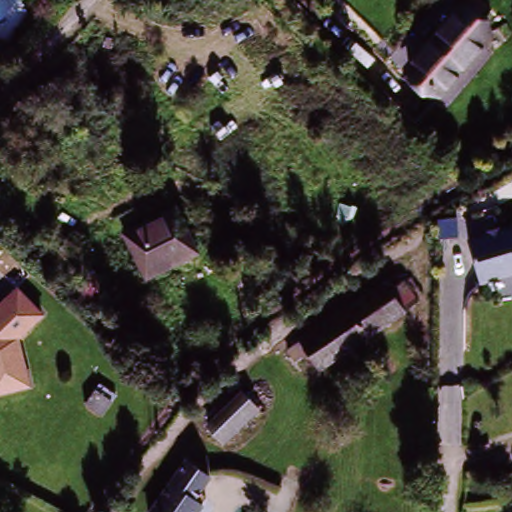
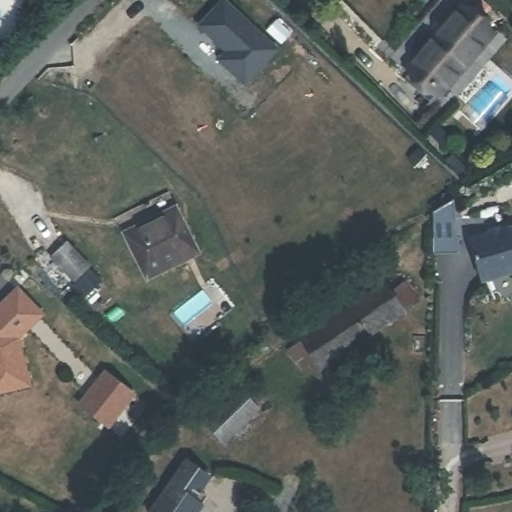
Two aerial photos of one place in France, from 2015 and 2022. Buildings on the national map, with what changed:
new [(280,47),(249,82),(222,58),(231,48),(202,24),(223,0),(226,0),(280,47)]
unchanged [(403,77),(412,68),(410,66),(466,12),(493,41),(437,94),(435,91),(425,100),(403,77)]
unchanged [(151,280),(125,232),(171,206),(196,255),(151,280)]
unchanged [(481,281),(470,238),(492,232),(490,228),(498,225),(500,230),(508,227),(512,228),(512,272),(481,281)]
unchanged [(84,303),(72,293),(75,290),(44,261),(55,248),(87,277),(98,287),(84,303)]
unchanged [(296,350),(307,343),(405,279),(420,303),(323,366),(312,374),(296,350)]
unchanged [(0,390),(0,313),(21,293),(46,319),(22,342),(27,387),(0,390)]
new [(107,371),(135,393),(109,426),(81,405),(107,371)]
unchanged [(226,445),(215,434),(249,401),(259,411),(264,416),(231,450),(226,445)]
unchanged [(144,512),(187,467),(209,487),(185,512),(144,512)]

